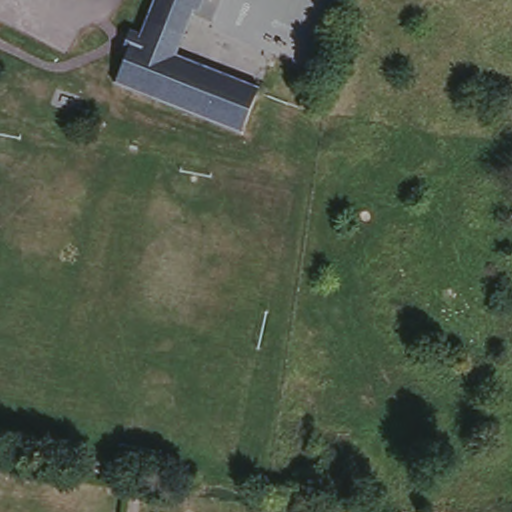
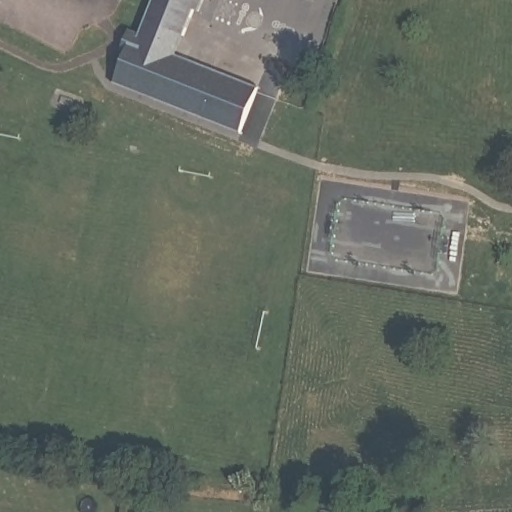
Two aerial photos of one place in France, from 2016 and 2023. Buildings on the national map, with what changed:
unchanged [(188,30),(149,16),(155,0),(206,0),(204,7),(197,5),(188,30)]
unchanged [(188,30),(178,55),(259,87),(242,132),(115,82),(131,44),(123,40),(130,24),(141,28),(149,16),(188,30)]

